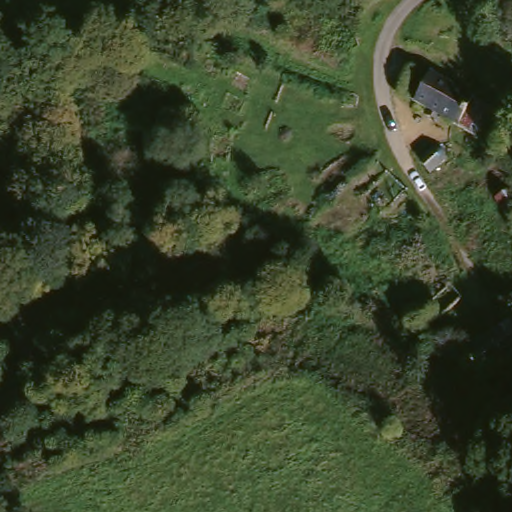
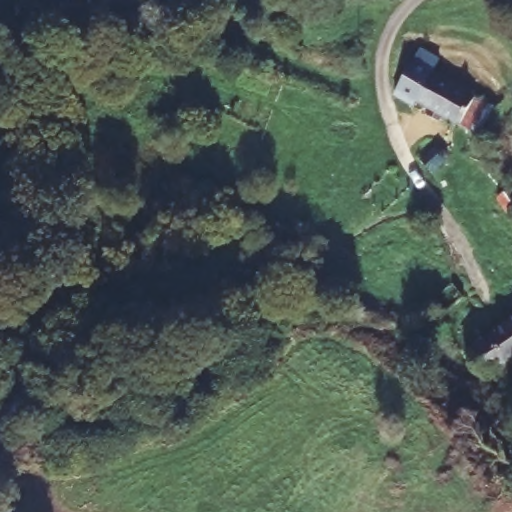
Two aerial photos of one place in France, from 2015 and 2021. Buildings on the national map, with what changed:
unchanged [(448,87),(496,120),(477,147),(400,98),(405,88),(395,82),(406,65),(415,71),(417,66),(448,87)]
unchanged [(415,160),(430,150),(440,165),(423,175),(415,160)]
unchanged [(512,220),(502,225),(490,203),(507,195),(512,202),(512,220)]
unchanged [(512,305),(512,317),(506,308),(512,305)]
unchanged [(512,321),(512,361),(505,366),(486,338),(512,321)]
unchanged [(455,357),(479,342),(486,338),(505,366),(501,369),(486,379),(473,387),(468,379),(455,357)]

